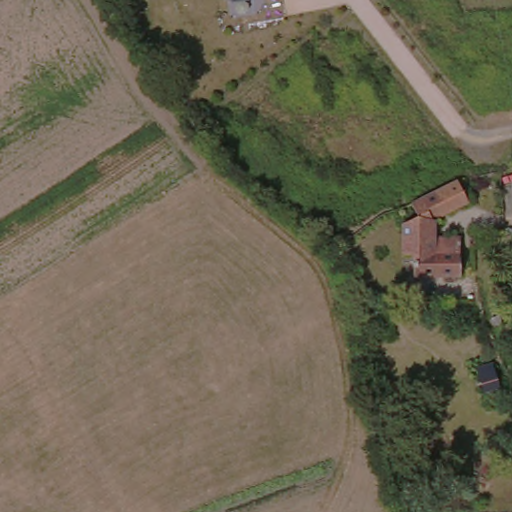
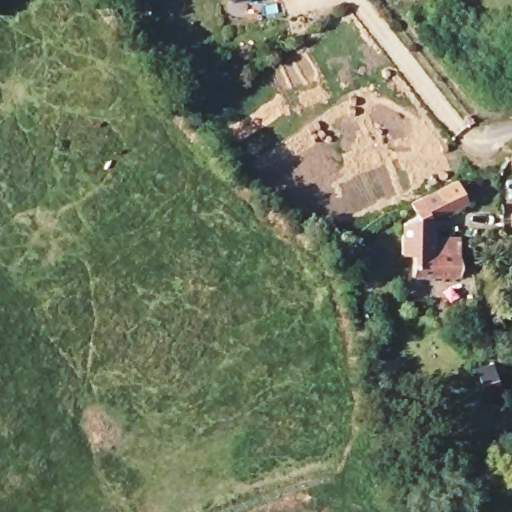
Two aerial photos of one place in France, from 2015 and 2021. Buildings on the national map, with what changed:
unchanged [(453,279),(408,281),(406,264),(393,262),(393,227),(404,226),(403,209),(453,180),(466,205),(433,225),(431,242),(458,244),(453,279)]

